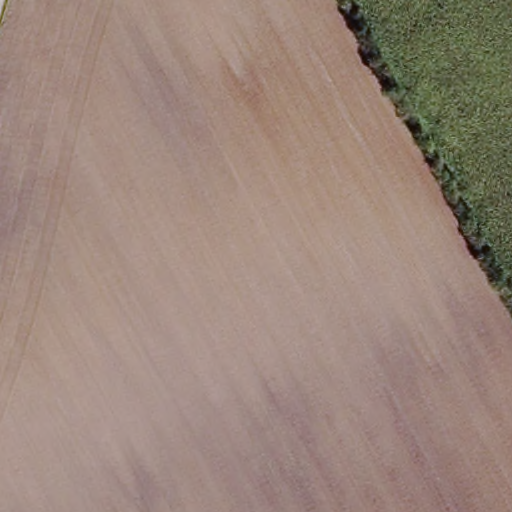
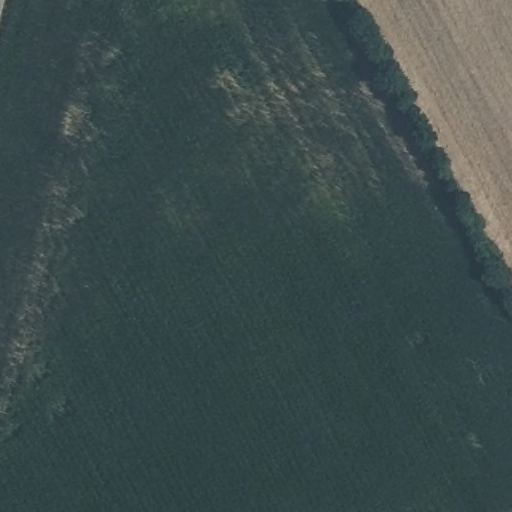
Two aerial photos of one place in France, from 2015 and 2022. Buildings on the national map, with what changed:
[]

